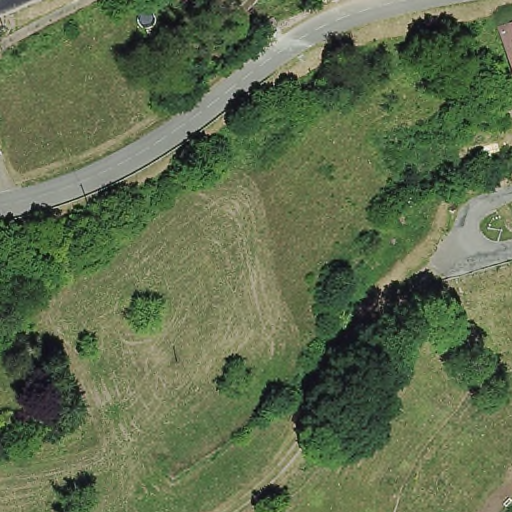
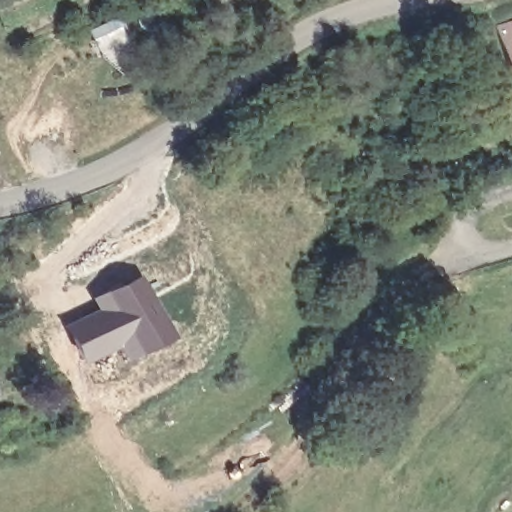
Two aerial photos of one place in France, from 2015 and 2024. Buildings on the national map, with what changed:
unchanged [(255,0),(275,26),(258,39),(237,10),(250,0),(255,0)]
unchanged [(506,62),(502,52),(497,36),(512,30),(512,79),(506,62)]
new [(140,277),(171,338),(121,365),(110,344),(78,360),(66,325),(99,313),(90,295),(140,277)]

